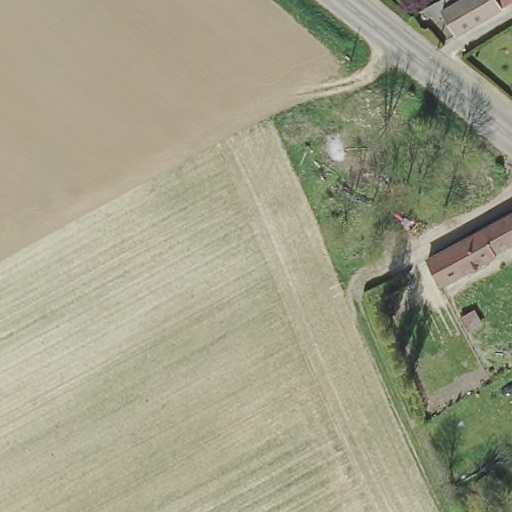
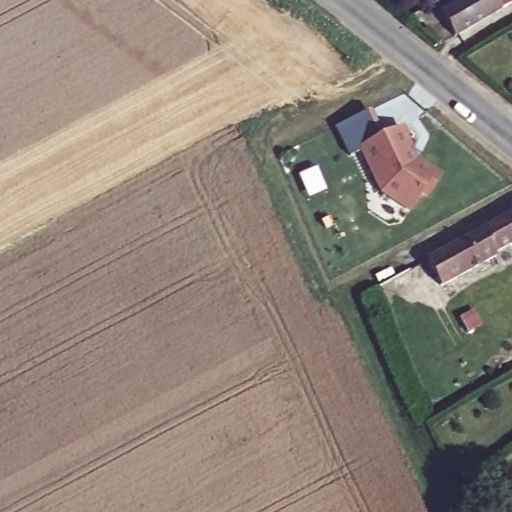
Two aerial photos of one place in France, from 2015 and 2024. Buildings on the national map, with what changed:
unchanged [(431,18),(430,13),(452,0),(506,0),(440,39),(426,20),(431,18)]
new [(365,152),(353,158),(338,130),(370,113),(385,140),(403,129),(420,161),(443,175),(432,194),(427,191),(415,209),(387,192),(365,152)]
unchanged [(477,226),(512,207),(512,238),(490,251),(477,226)]
unchanged [(492,254),(436,284),(422,257),(477,226),(490,251),(492,254)]
unchanged [(467,317),(476,333),(466,340),(457,323),(467,317)]

